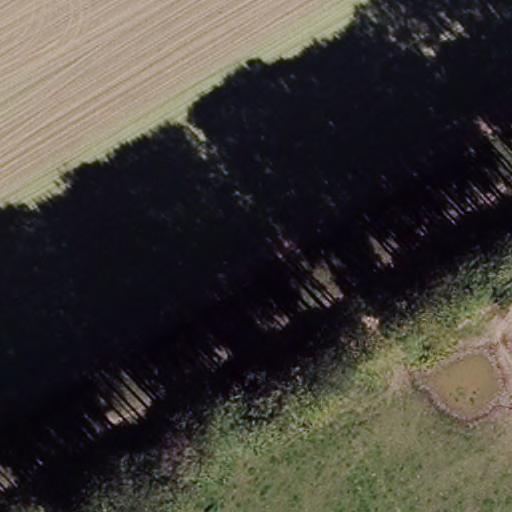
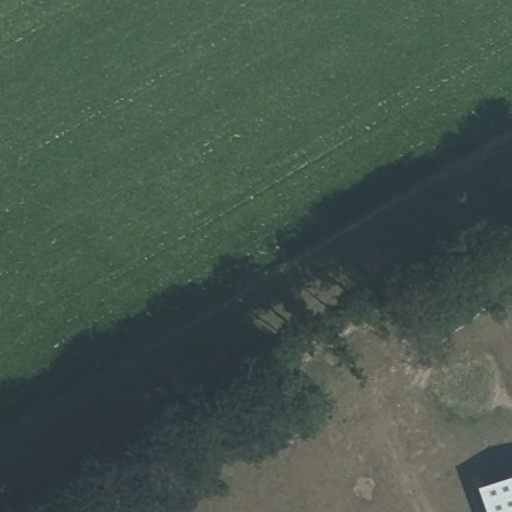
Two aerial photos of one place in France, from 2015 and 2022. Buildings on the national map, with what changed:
new [(512,477),(512,512),(487,512),(479,489),(512,477)]

